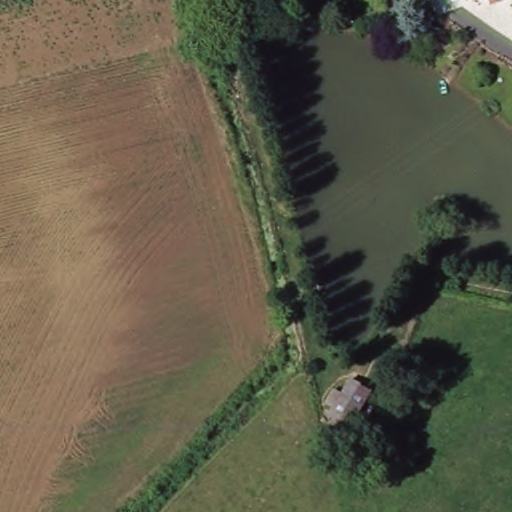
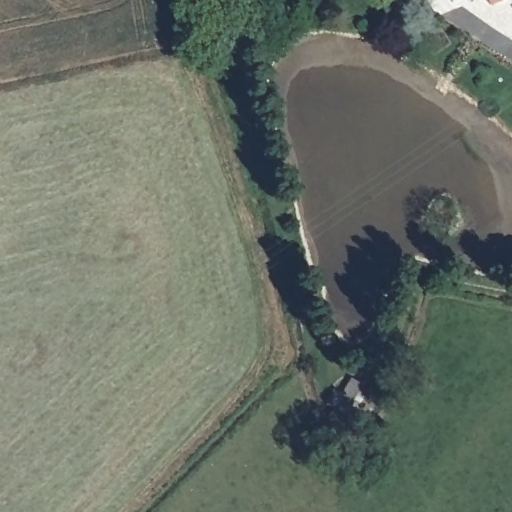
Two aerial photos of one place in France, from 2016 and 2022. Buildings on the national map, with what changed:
unchanged [(456,0),(466,0),(457,3),(456,0)]
unchanged [(473,0),(478,0),(474,1),(473,0)]
unchanged [(492,0),(509,0),(495,6),(492,0)]

